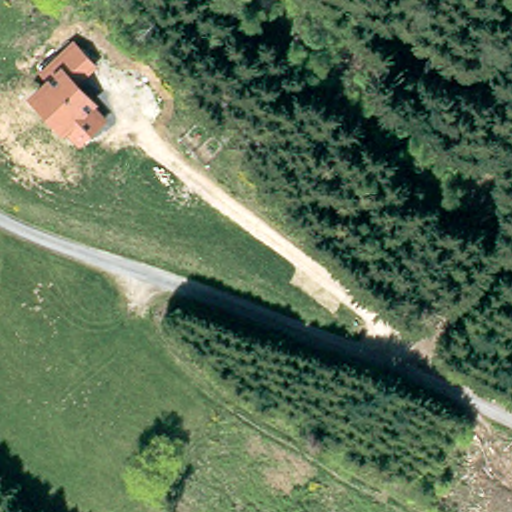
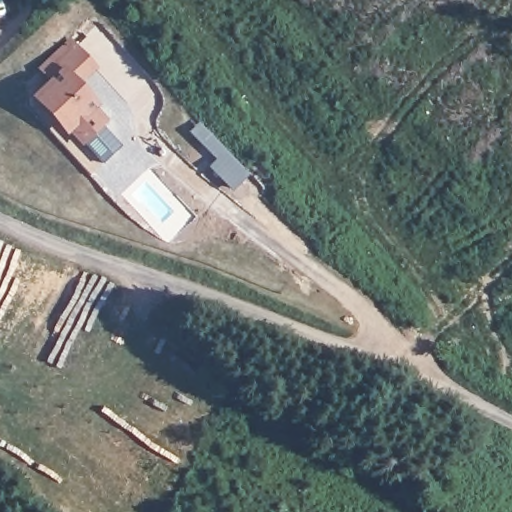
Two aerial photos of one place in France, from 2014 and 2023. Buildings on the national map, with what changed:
unchanged [(97,66),(78,81),(100,106),(96,110),(105,119),(80,145),(70,135),(67,137),(30,95),(48,78),(39,69),(74,41),(97,66)]
new [(190,132),(198,124),(227,152),(250,174),(235,189),(212,168),(220,161),(190,132)]

